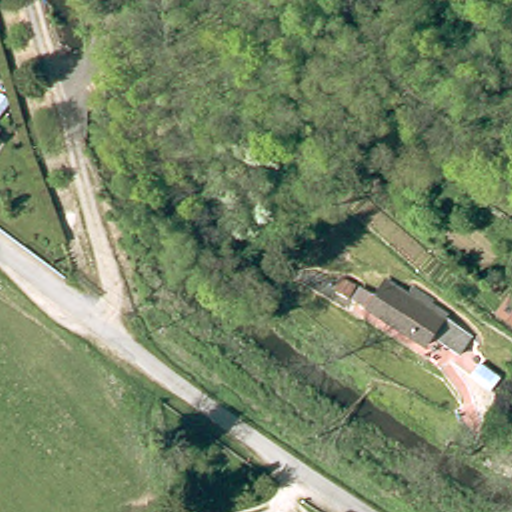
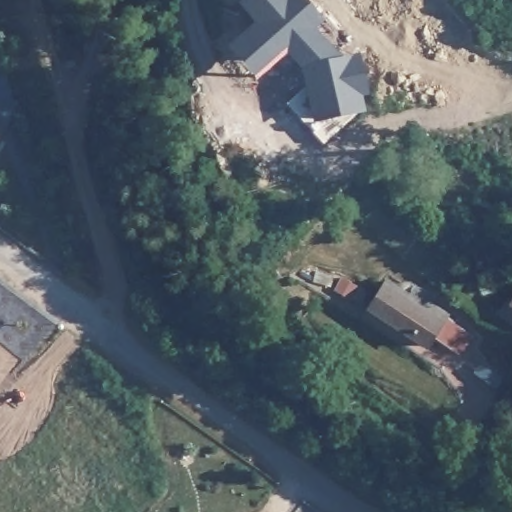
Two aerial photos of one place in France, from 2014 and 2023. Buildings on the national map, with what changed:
new [(248,0),(304,0),(321,20),(311,28),(338,64),(356,60),(363,94),(356,96),(360,112),(321,146),(285,104),(307,85),(302,68),(296,60),(299,58),(290,47),(272,62),(247,34),(259,24),(242,4),(248,0)]
new [(0,135),(0,132),(1,133),(0,135)]
unchanged [(439,354),(429,349),(409,338),(391,328),(371,317),(387,288),(410,300),(414,294),(432,307),(430,311),(445,320),(454,327),(439,354)]
unchanged [(481,376),(469,366),(477,353),(490,363),(481,376)]

